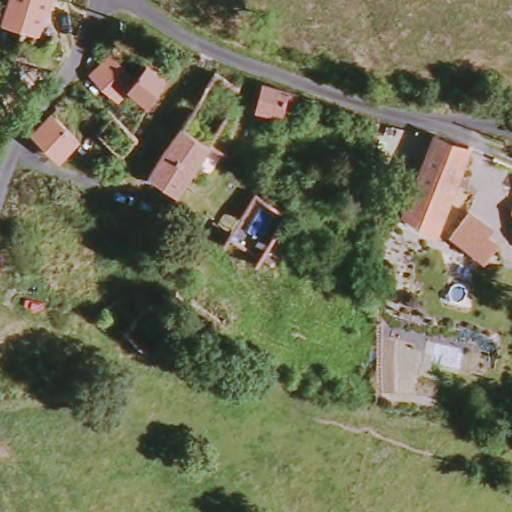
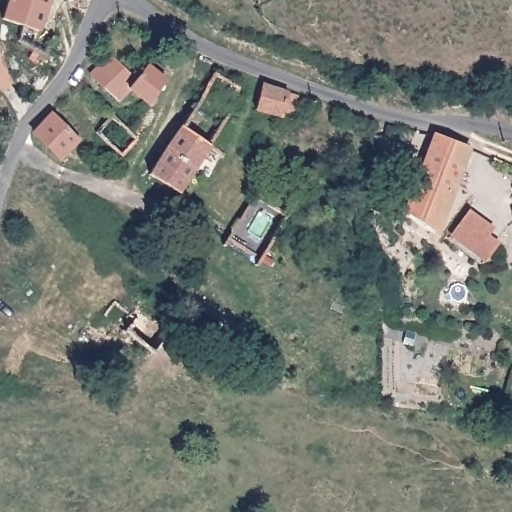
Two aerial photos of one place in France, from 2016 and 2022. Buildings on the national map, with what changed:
unchanged [(10,18),(14,0),(45,0),(40,24),(10,18)]
unchanged [(138,77),(146,66),(164,79),(148,106),(128,90),(119,103),(89,75),(110,56),(138,77)]
unchanged [(296,99),(288,116),(278,114),(274,119),(251,108),(263,84),(296,99)]
unchanged [(51,114),(79,141),(60,163),(32,133),(51,114)]
unchanged [(208,143),(179,191),(152,174),(181,124),(208,143)]
unchanged [(472,144),(431,231),(407,215),(441,130),(472,144)]
unchanged [(472,210),(508,237),(487,271),(444,243),(472,210)]

